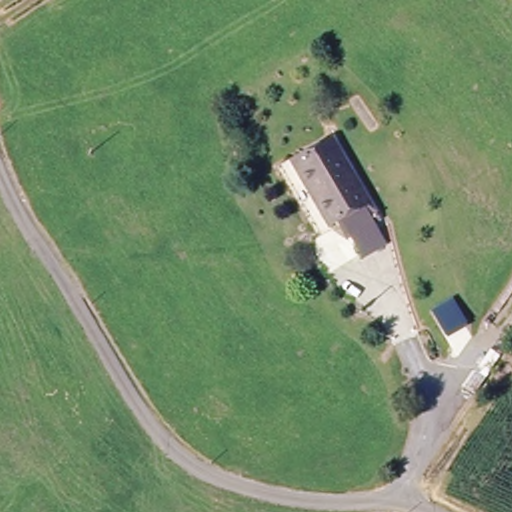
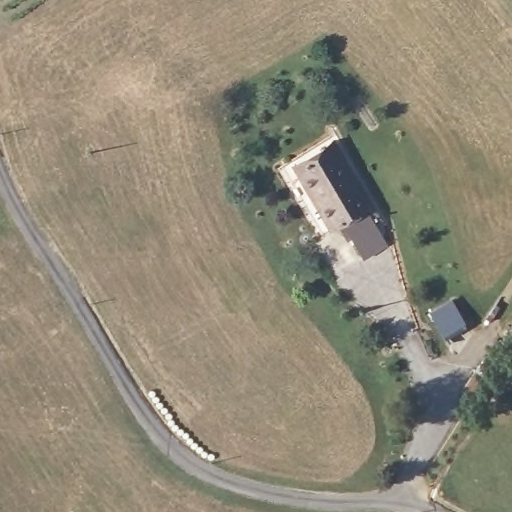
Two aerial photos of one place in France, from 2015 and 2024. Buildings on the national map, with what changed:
unchanged [(342,239),(331,223),(322,229),(283,171),(320,145),(361,208),(370,221),(358,228),(342,239)]

